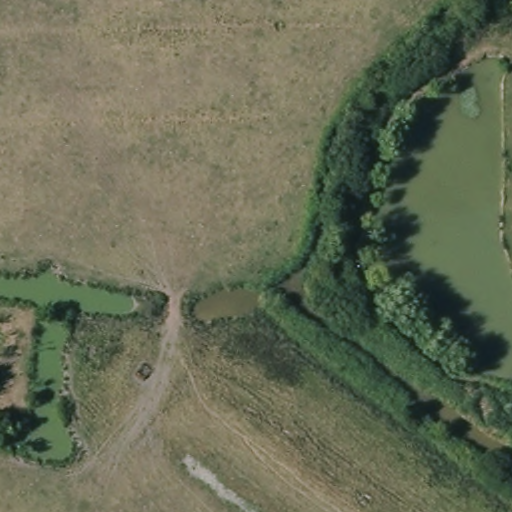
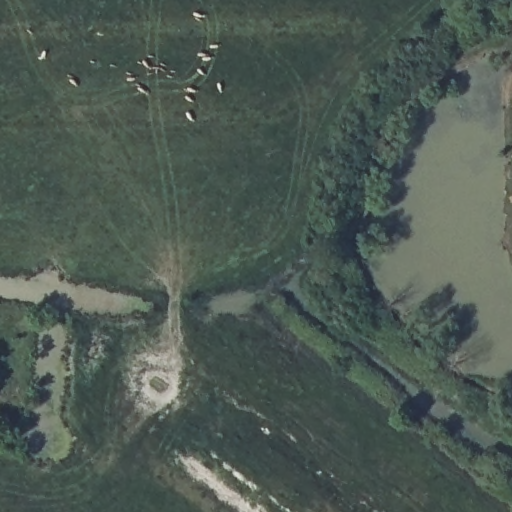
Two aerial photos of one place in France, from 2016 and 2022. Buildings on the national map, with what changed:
[]

